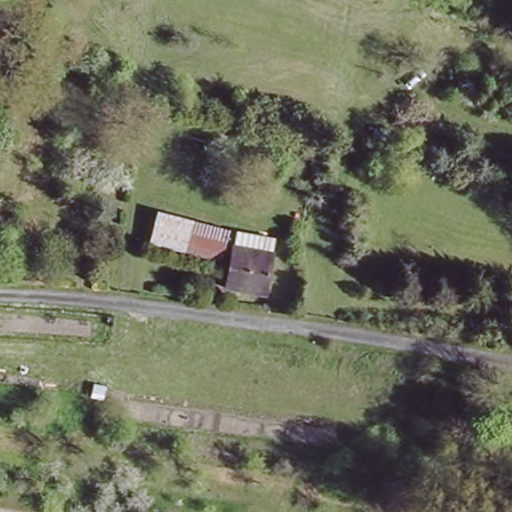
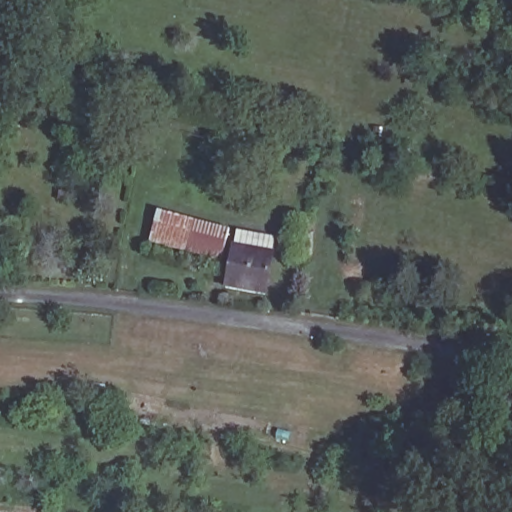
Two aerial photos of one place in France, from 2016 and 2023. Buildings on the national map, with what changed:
unchanged [(230,233),(223,263),(150,244),(159,212),(230,233)]
unchanged [(228,291),(233,262),(237,248),(239,234),(280,241),(276,256),(273,269),(272,273),(268,297),(242,293),(228,291)]

